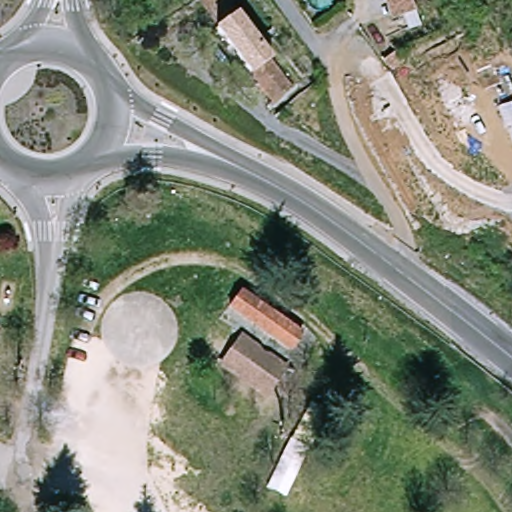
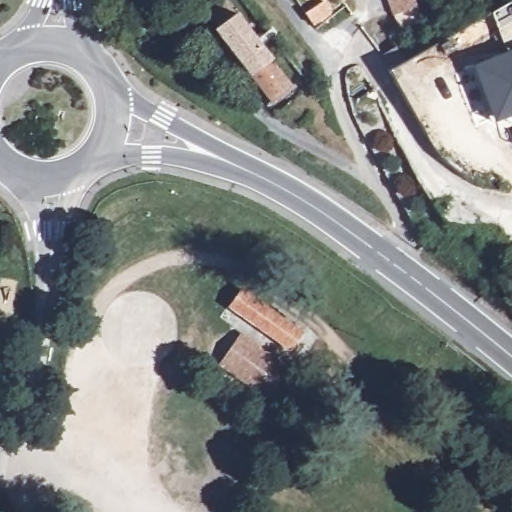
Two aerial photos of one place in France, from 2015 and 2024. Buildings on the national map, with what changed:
unchanged [(397,20),(389,0),(417,0),(422,12),(397,20)]
new [(511,49),(493,14),(512,5),(512,48),(511,49)]
unchanged [(228,8),(305,102),(286,121),(224,52),(228,46),(207,22),(228,8)]
new [(512,48),(512,117),(507,119),(498,122),(476,67),(493,59),(511,49),(512,48)]
unchanged [(230,310),(240,295),(270,313),(275,307),(306,330),(301,336),(291,351),(230,310)]
unchanged [(288,367),(266,401),(220,369),(243,337),(288,367)]

